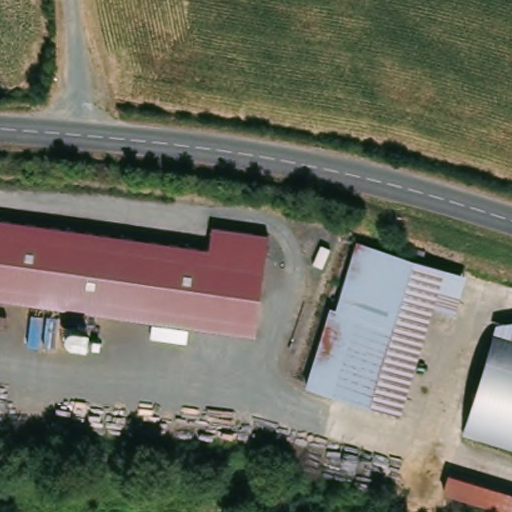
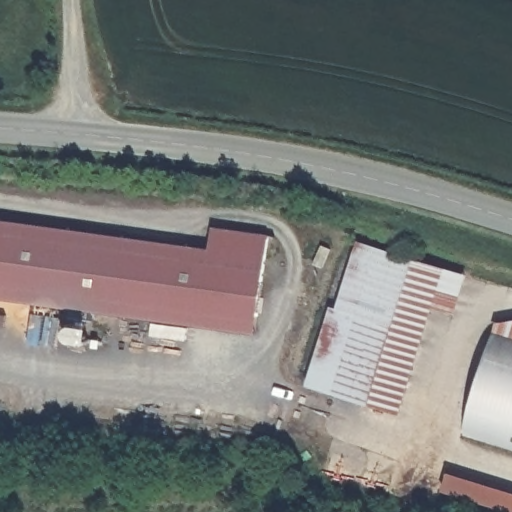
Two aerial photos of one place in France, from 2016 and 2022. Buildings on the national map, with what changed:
unchanged [(0,302),(0,227),(205,251),(208,230),(265,237),(261,281),(230,278),(225,330),(0,302)]
unchanged [(354,243),(455,270),(449,292),(430,287),(397,410),(309,385),(329,312),(335,314),(354,243)]
unchanged [(261,281),(255,333),(225,330),(230,278),(261,281)]
unchanged [(512,321),(512,432),(468,417),(499,317),(512,321)]
unchanged [(512,493),(512,512),(445,490),(451,472),(512,493)]

